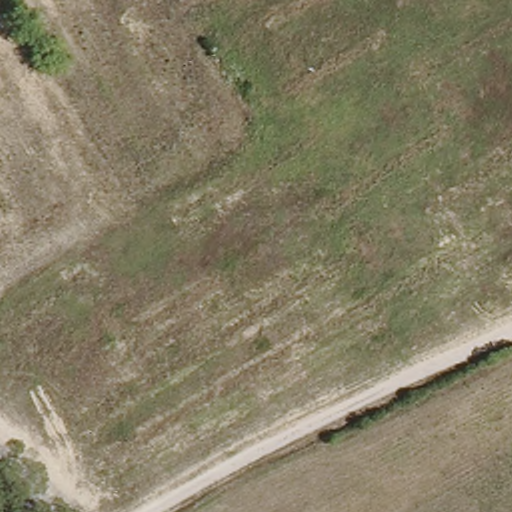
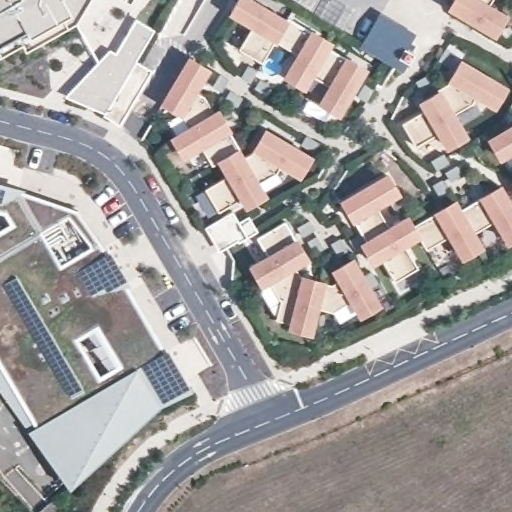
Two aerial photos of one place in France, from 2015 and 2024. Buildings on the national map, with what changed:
new [(74,19),(25,50),(20,39),(0,52),(0,0),(84,0),(74,19)]
new [(309,70),(302,82),(284,72),(297,50),(271,34),(257,56),(236,44),(249,21),(226,8),(230,0),(253,0),(281,16),(283,13),(310,29),(328,39),(326,42),(346,55),(365,66),(339,110),(321,99),(330,82),(309,70)]
new [(490,6),(505,13),(495,37),(447,10),(452,0),(494,0),(490,6)]
new [(415,35),(401,59),(409,64),(404,73),(360,49),(379,15),(415,35)]
new [(119,125),(103,116),(105,113),(104,113),(64,97),(109,50),(115,53),(135,19),(154,30),(135,61),(151,71),(119,125)]
new [(186,124),(176,107),(174,110),(157,100),(184,56),(200,66),(190,84),(202,92),(213,108),(186,124)]
new [(435,85),(444,81),(446,77),(456,59),(501,85),(490,103),(476,94),(474,98),(450,111),(460,130),(442,140),(437,130),(415,141),(402,118),(424,106),(417,95),(435,85)]
new [(209,160),(198,142),(178,154),(167,136),(186,124),(213,108),(223,126),(234,144),(240,154),(251,147),(249,146),(259,128),(304,154),(294,172),(278,163),(274,170),(256,180),(263,191),(241,205),(236,197),(216,210),(202,187),(222,175),(212,157),(209,160)]
new [(489,133),(512,119),(512,144),(499,151),(489,133)]
new [(433,209),(450,198),(455,207),(477,194),(495,183),(512,211),(512,233),(504,238),(491,217),(469,230),(477,243),(460,253),(446,231),(426,243),(418,229),(374,256),(364,238),(350,217),(340,200),(383,173),(394,191),(374,202),(387,224),(407,212),(413,221),(433,209)]
new [(77,209),(190,388),(161,405),(70,488),(0,390),(0,230),(11,224),(7,213),(0,212),(0,188),(77,209)]
new [(234,210),(240,221),(248,217),(257,231),(242,240),(240,237),(220,249),(207,227),(234,210)]
new [(254,237),(283,219),(296,239),(306,257),(292,264),(268,278),(260,283),(250,265),(266,256),(254,237)]
new [(402,240),(416,263),(394,277),(379,253),(402,240)]
new [(323,281),(331,282),(337,278),(332,268),(350,258),(377,302),(359,313),(349,298),(331,309),(317,306),(312,329),(292,323),(302,276),(323,281)]
new [(292,264),(298,275),(302,276),(292,323),(273,318),(279,298),(268,278),(292,264)]

